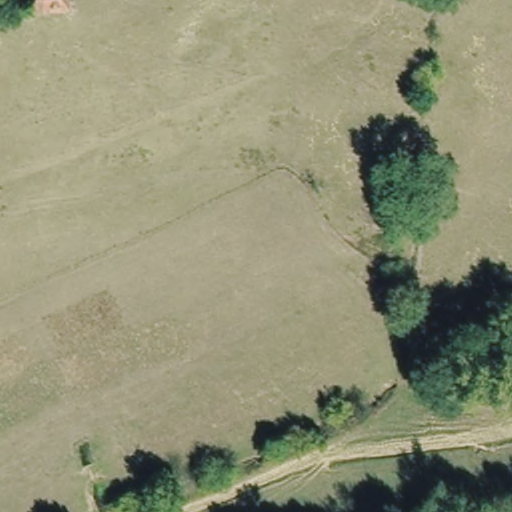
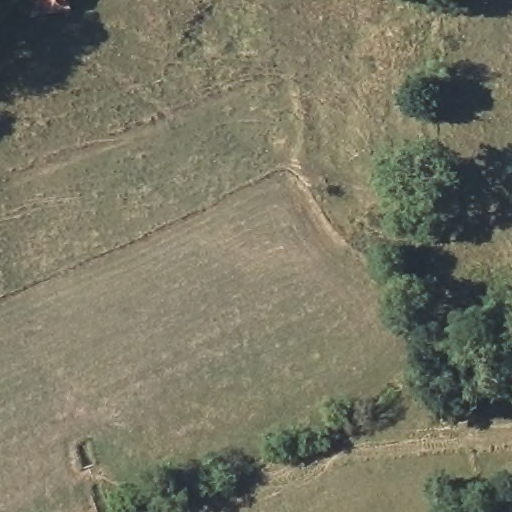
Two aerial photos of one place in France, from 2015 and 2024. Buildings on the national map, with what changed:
unchanged [(36,12),(33,0),(67,0),(67,7),(36,12)]

